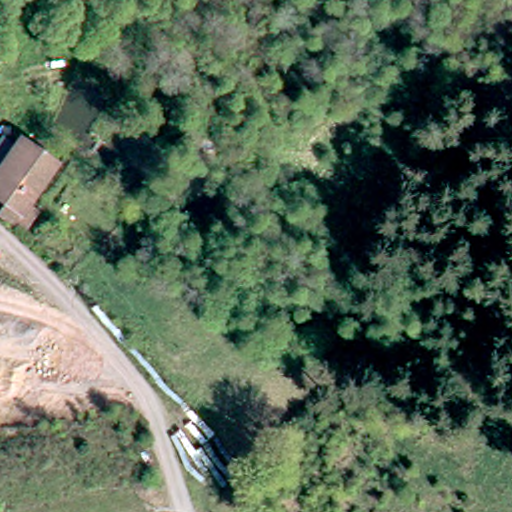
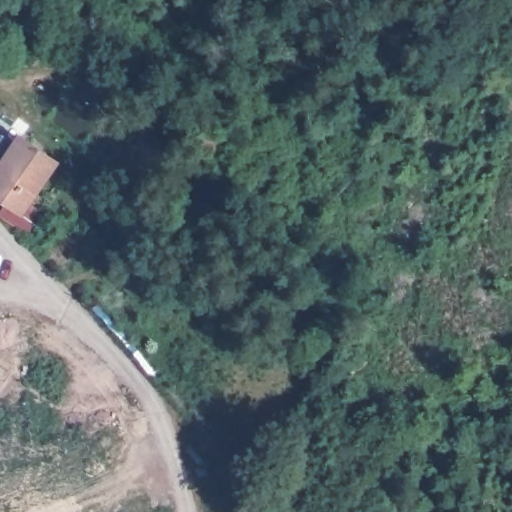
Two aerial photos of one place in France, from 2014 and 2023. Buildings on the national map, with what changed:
unchanged [(3,164),(0,161),(0,135),(10,124),(55,165),(18,219),(0,202),(0,167),(3,164)]

